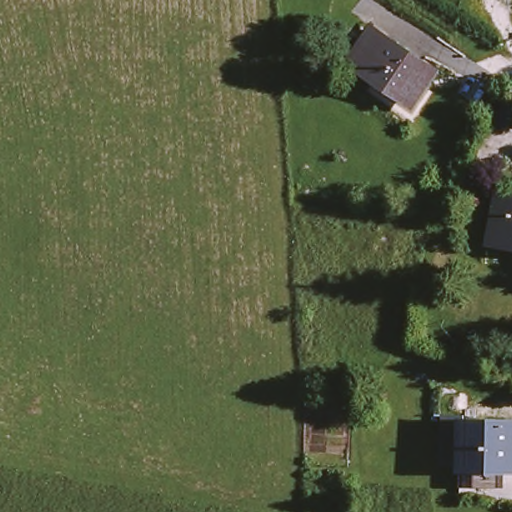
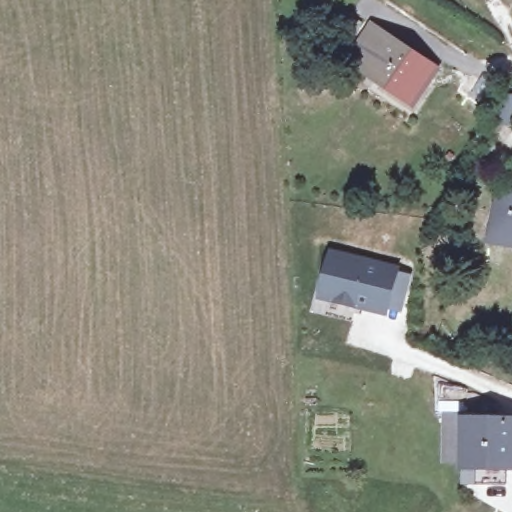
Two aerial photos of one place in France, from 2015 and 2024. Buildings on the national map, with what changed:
unchanged [(373,31),(434,71),(416,100),(354,60),(373,31)]
unchanged [(483,136),(499,106),(512,106),(512,135),(483,136)]
unchanged [(500,205),(512,207),(512,246),(494,243),(500,205)]
new [(329,251),(401,267),(388,317),(316,301),(329,251)]
unchanged [(471,478),(472,465),(453,465),(449,417),(476,410),(474,422),(512,422),(512,476),(471,478)]

